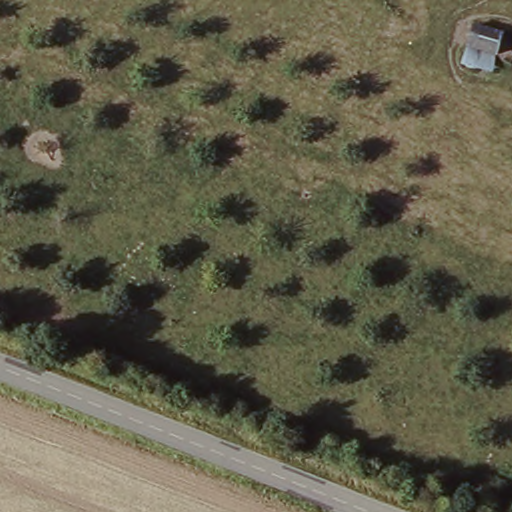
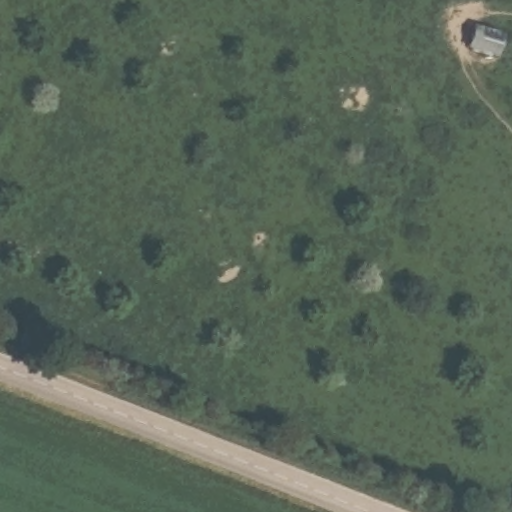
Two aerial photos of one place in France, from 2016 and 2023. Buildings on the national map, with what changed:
unchanged [(502,36),(498,60),(466,54),(469,30),(502,36)]

